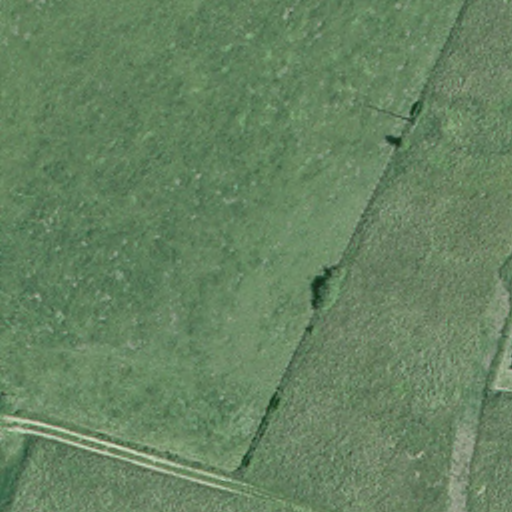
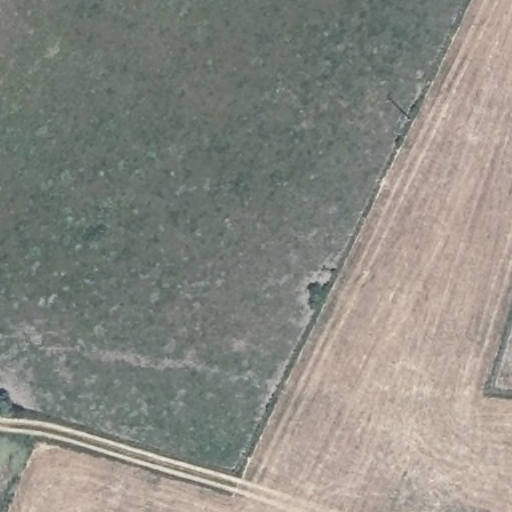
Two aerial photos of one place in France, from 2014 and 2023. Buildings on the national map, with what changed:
[]

